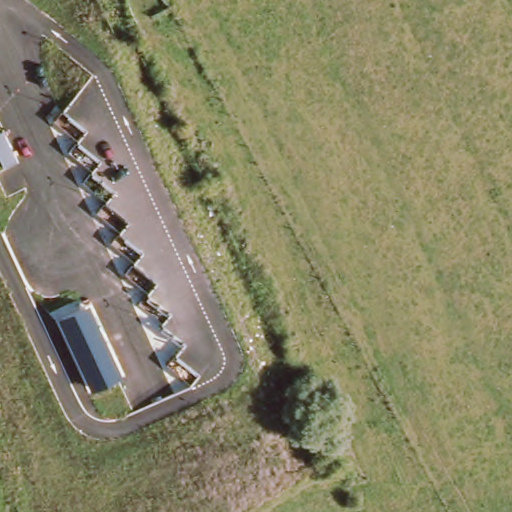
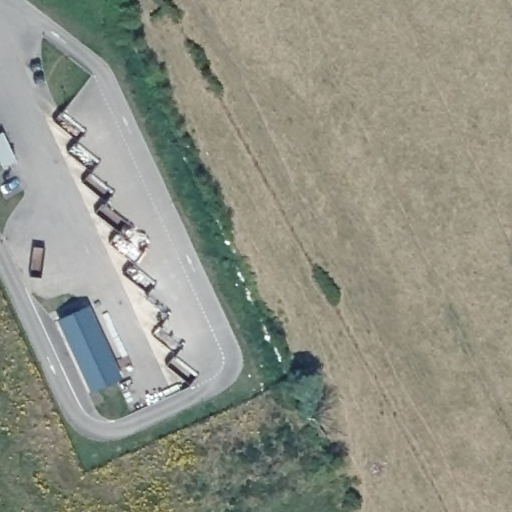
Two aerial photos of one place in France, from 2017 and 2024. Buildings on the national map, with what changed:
unchanged [(88,305),(121,377),(90,391),(57,319),(88,305)]

